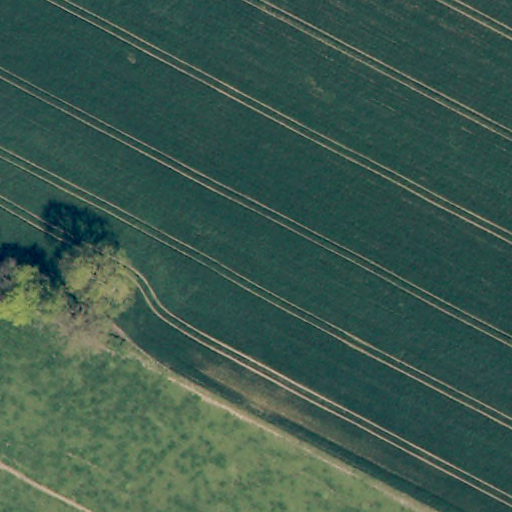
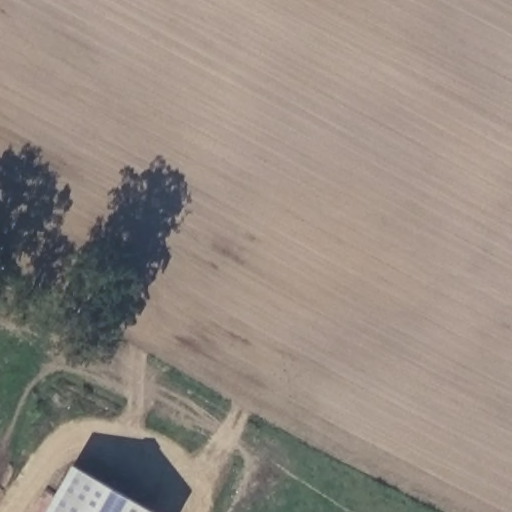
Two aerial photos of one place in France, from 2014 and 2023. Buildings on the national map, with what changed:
new [(154,512),(49,512),(75,466),(154,512)]

